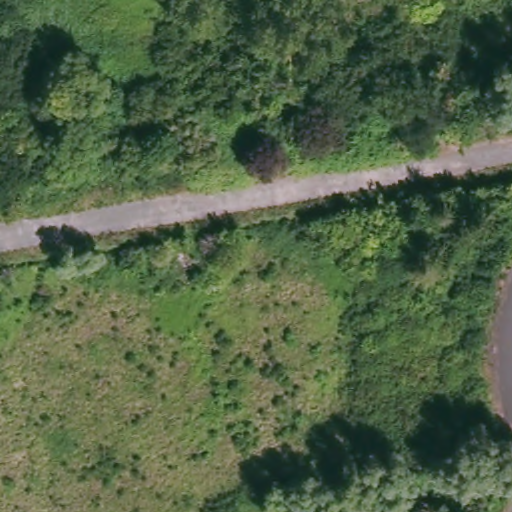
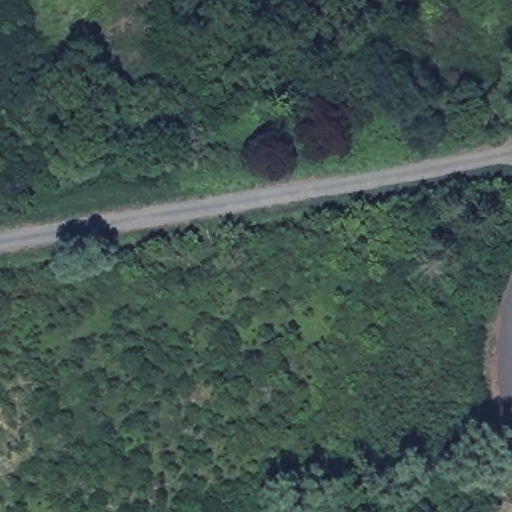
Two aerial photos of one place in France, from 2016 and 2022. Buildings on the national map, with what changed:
[]

